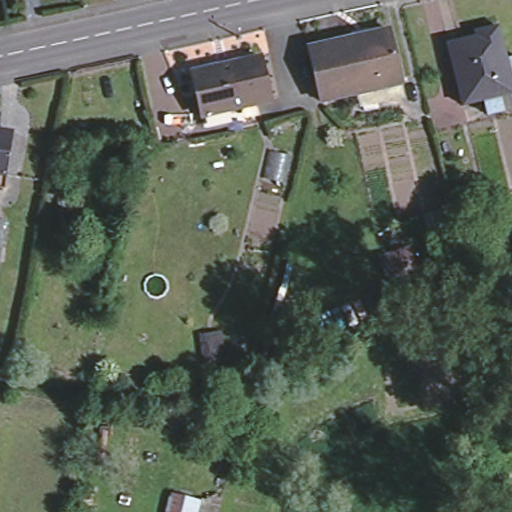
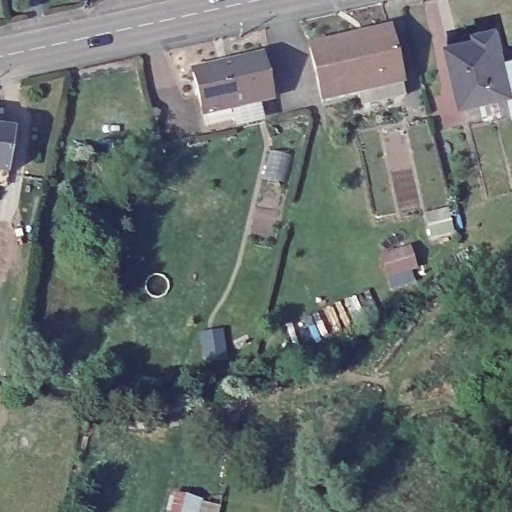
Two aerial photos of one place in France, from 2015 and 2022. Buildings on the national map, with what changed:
unchanged [(483,108),(479,92),(459,96),(446,36),(473,29),(496,24),(503,56),(512,55),(512,101),(483,108)]
unchanged [(321,98),(310,42),(389,25),(401,81),(404,93),(368,100),(366,93),(366,89),(321,98)]
unchanged [(231,63),(263,55),(273,98),(204,113),(195,73),(231,65),(231,63)]
unchanged [(0,174),(0,131),(18,134),(11,176),(0,174)]

